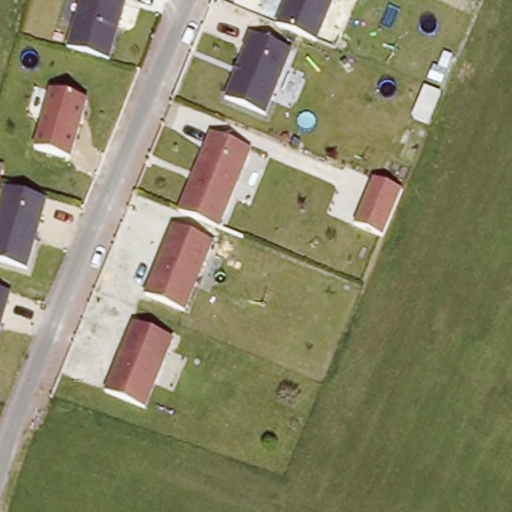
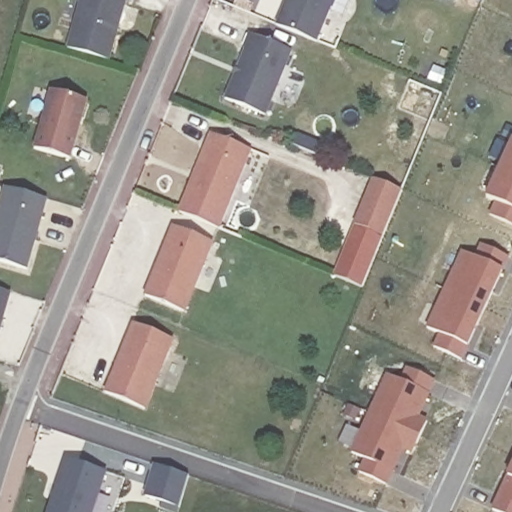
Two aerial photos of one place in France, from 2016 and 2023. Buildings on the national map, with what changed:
unchanged [(112,61),(66,47),(79,0),(128,0),(112,61)]
unchanged [(319,40),(277,24),(286,0),(334,0),(319,40)]
unchanged [(251,31),(292,47),(265,116),(224,97),(251,31)]
unchanged [(90,98),(71,160),(33,148),(50,88),(90,98)]
unchanged [(211,130),(252,147),(220,228),(180,209),(211,130)]
new [(512,147),(512,224),(483,210),(512,147)]
unchanged [(355,225),(373,178),(403,190),(383,236),(355,225)]
unchanged [(28,271),(0,262),(0,199),(4,185),(48,194),(28,271)]
unchanged [(212,241),(182,310),(142,294),(171,222),(212,241)]
new [(423,341),(462,251),(477,258),(483,244),(510,256),(463,360),(423,341)]
unchanged [(0,286),(13,290),(0,333),(0,286)]
unchanged [(175,333),(146,411),(103,390),(131,319),(175,333)]
new [(362,473),(368,458),(355,452),(389,375),(403,381),(408,368),(435,380),(418,417),(426,421),(412,452),(404,448),(388,485),(362,473)]
new [(107,473),(95,512),(48,512),(65,459),(107,473)]
new [(156,464),(190,475),(180,508),(146,497),(156,464)]
new [(512,469),(512,512),(497,512),(492,510),(512,469)]

